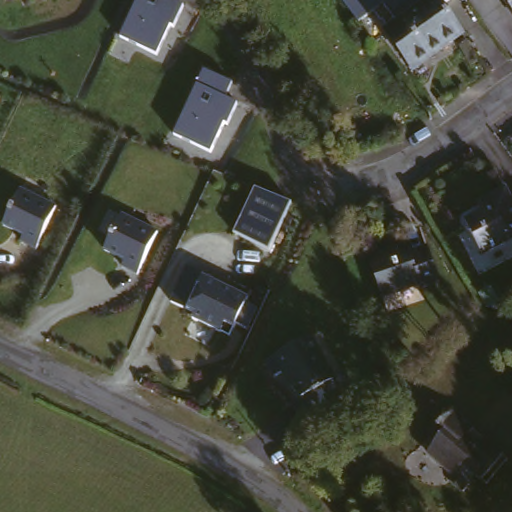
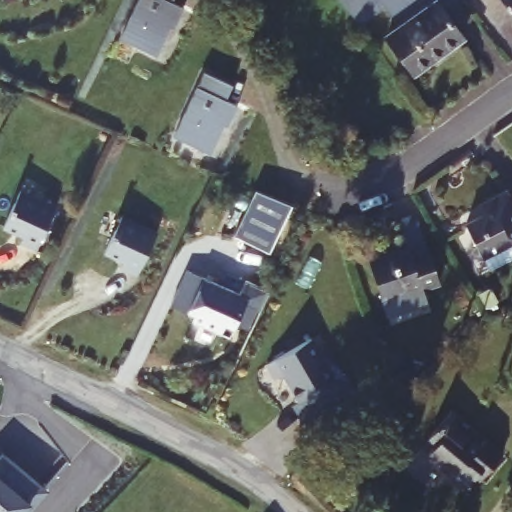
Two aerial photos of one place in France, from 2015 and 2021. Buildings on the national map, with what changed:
unchanged [(184,0),(161,55),(123,35),(138,0),(184,0)]
unchanged [(474,35),(424,74),(396,37),(408,28),(394,8),(371,28),(350,0),(456,0),(451,5),(474,35)]
unchanged [(510,0),(512,0),(512,3),(510,0)]
unchanged [(207,64),(236,78),(228,96),(238,101),(215,153),(175,132),(207,64)]
unchanged [(1,229),(23,186),(59,203),(39,244),(1,229)]
unchanged [(293,202),(271,247),(238,230),(258,186),(293,202)]
unchanged [(512,192),(512,244),(484,255),(470,214),(481,212),(480,203),(511,191),(512,192)]
unchanged [(122,215),(158,231),(136,275),(121,268),(125,261),(105,252),(122,215)]
unchanged [(434,244),(447,284),(387,298),(378,258),(434,244)]
unchanged [(250,295),(234,332),(170,300),(187,266),(250,295)]
unchanged [(315,336),(339,378),(298,404),(272,359),(315,336)]
unchanged [(434,443),(445,431),(438,424),(461,402),(482,421),(474,429),(480,435),(452,460),(434,443)]
unchanged [(480,435),(484,440),(491,432),(508,447),(485,473),(480,466),(467,483),(453,470),(458,465),(452,460),(480,435)]
new [(0,458),(3,455),(45,491),(31,507),(27,512),(0,512),(0,458)]

